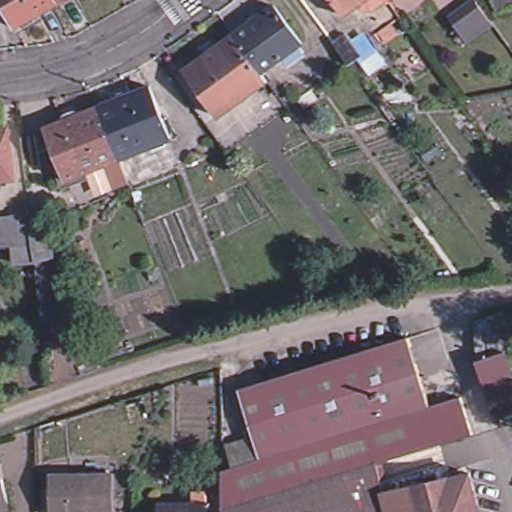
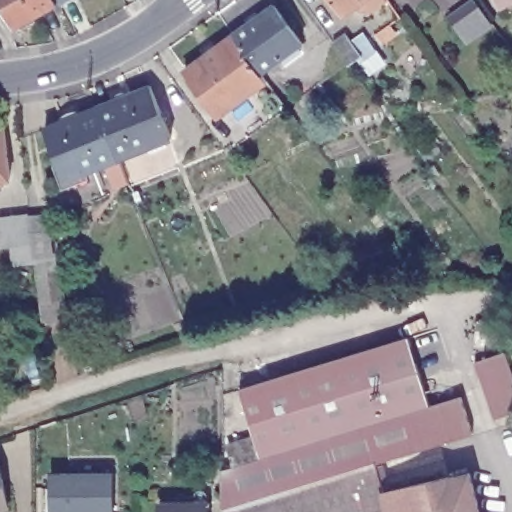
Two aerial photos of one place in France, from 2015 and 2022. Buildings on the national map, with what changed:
unchanged [(52,4),(9,29),(0,13),(0,0),(60,0),(52,4)]
unchanged [(204,51),(207,55),(218,47),(214,44),(233,30),(247,19),(249,23),(259,16),(255,13),(272,0),(301,38),(260,67),(267,76),(218,112),(183,67),(204,51)]
unchanged [(341,9),(334,0),(354,0),(341,9)]
unchanged [(491,18),(467,36),(448,12),(465,0),(477,0),(491,18)]
unchanged [(495,8),(490,0),(511,0),(495,8)]
unchanged [(344,28),(361,50),(346,60),(330,38),(344,28)]
unchanged [(80,108),(83,115),(98,109),(114,102),(111,96),(148,81),(168,134),(116,154),(64,175),(43,123),(80,108)]
unchanged [(9,174),(0,175),(0,122),(4,121),(9,174)]
unchanged [(56,255),(60,317),(40,322),(34,260),(13,263),(12,241),(0,242),(0,213),(49,208),(56,255)]
unchanged [(472,319),(493,314),(506,350),(512,368),(512,409),(494,414),(474,354),(472,319)]
unchanged [(238,383),(408,332),(429,401),(428,402),(366,421),(364,421),(259,453),(238,383)]
unchanged [(458,393),(472,431),(443,440),(432,401),(458,393)]
unchanged [(364,421),(366,421),(428,402),(429,401),(432,401),(443,440),(378,459),(376,456),(374,457),(364,421)]
unchanged [(374,457),(246,495),(236,460),(259,453),(364,421),(374,457)]
unchanged [(224,463),(236,460),(246,495),(374,457),(376,456),(378,459),(383,479),(384,488),(412,481),(447,472),(448,474),(457,512),(222,512),(221,464),(224,463)]
unchanged [(8,506),(0,508),(0,467),(6,501),(8,506)]
unchanged [(469,469),(478,512),(457,512),(448,474),(469,469)]
unchanged [(111,512),(49,512),(49,472),(111,472),(111,512)]
unchanged [(159,512),(158,501),(181,500),(181,494),(201,494),(201,500),(205,499),(206,512),(159,512)]

